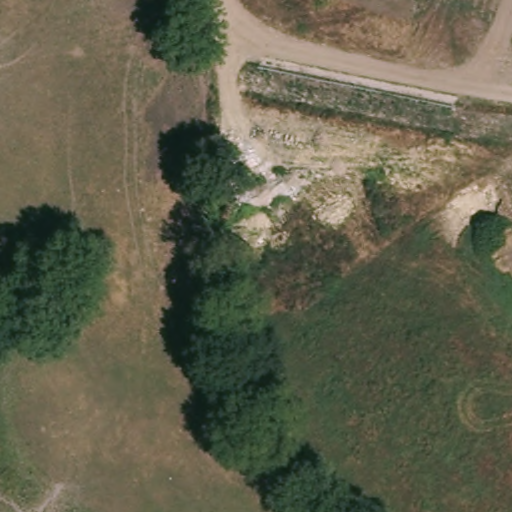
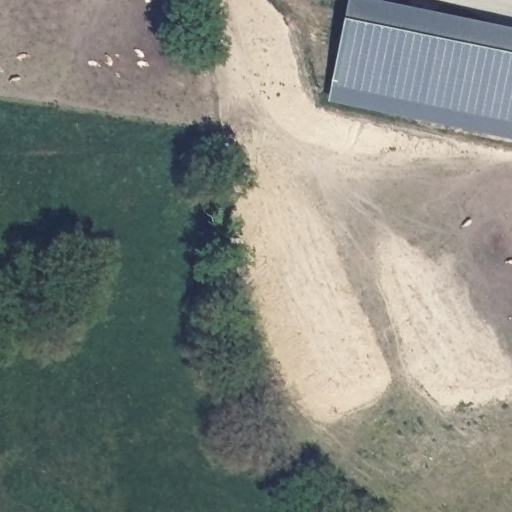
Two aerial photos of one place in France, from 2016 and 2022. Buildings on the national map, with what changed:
new [(348,0),(364,0),(512,29),(512,140),(328,104),(348,0)]

